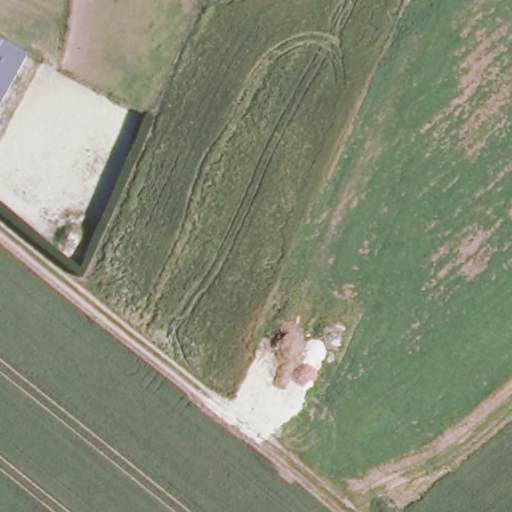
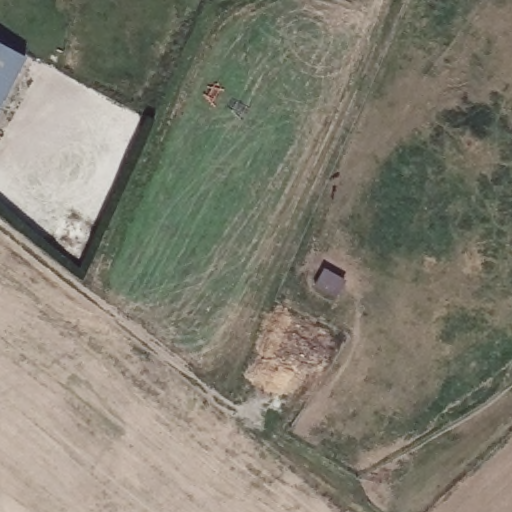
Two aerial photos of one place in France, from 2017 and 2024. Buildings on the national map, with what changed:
unchanged [(27,56),(0,104),(0,43),(27,56)]

